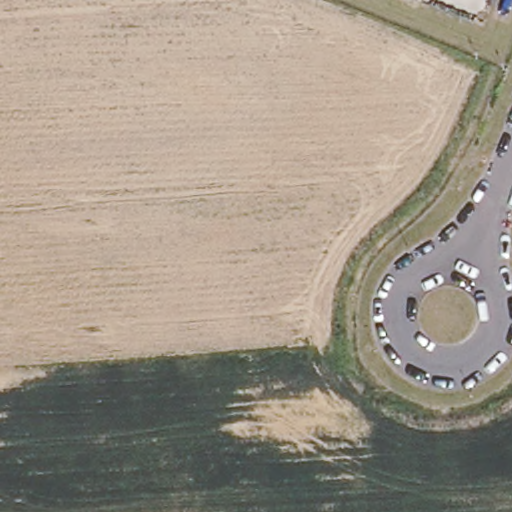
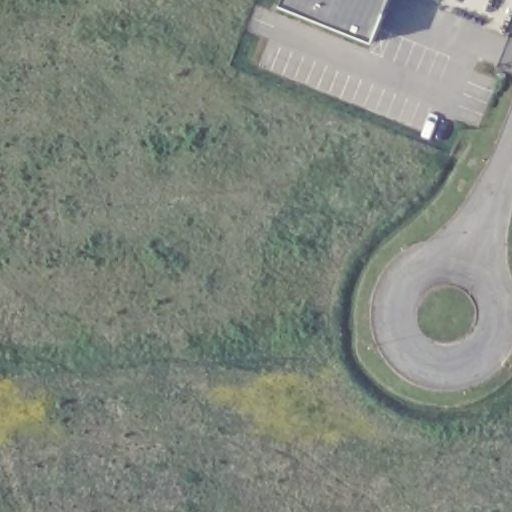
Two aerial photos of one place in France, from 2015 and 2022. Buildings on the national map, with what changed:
new [(374,41),(282,5),(284,0),(390,0),(374,41)]

